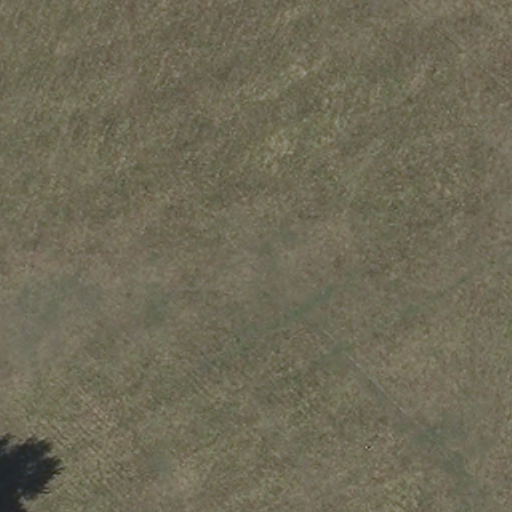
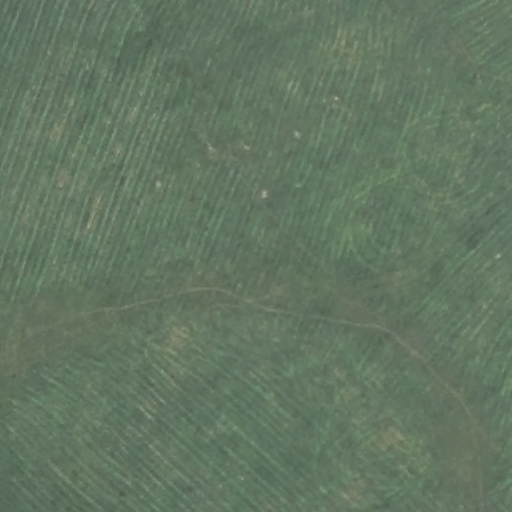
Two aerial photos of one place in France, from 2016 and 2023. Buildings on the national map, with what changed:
[]

